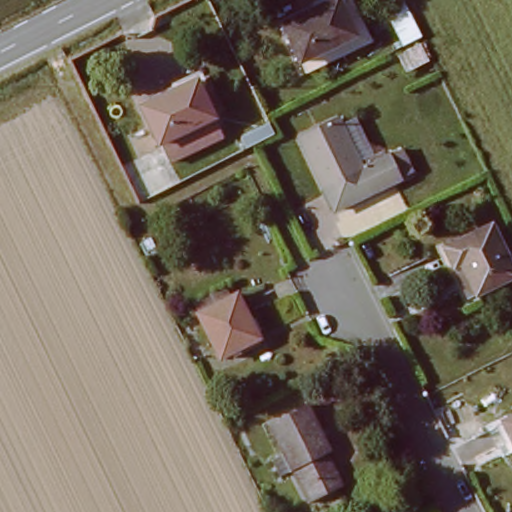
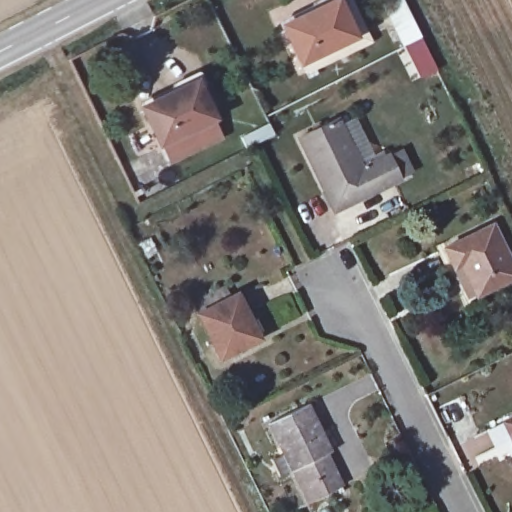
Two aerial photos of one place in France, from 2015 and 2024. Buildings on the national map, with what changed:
unchanged [(322,0),(333,0),(349,31),(295,59),(277,23),(322,0)]
unchanged [(193,79),(211,116),(160,141),(142,104),(193,79)]
unchanged [(330,121),(354,171),(380,159),(391,183),(328,213),(292,139),(330,121)]
unchanged [(486,224),(510,278),(463,298),(440,244),(486,224)]
unchanged [(235,292),(256,340),(218,358),(196,309),(235,292)]
unchanged [(308,413),(335,475),(293,493),(267,430),(308,413)]
unchanged [(512,449),(500,420),(512,415),(512,449)]

